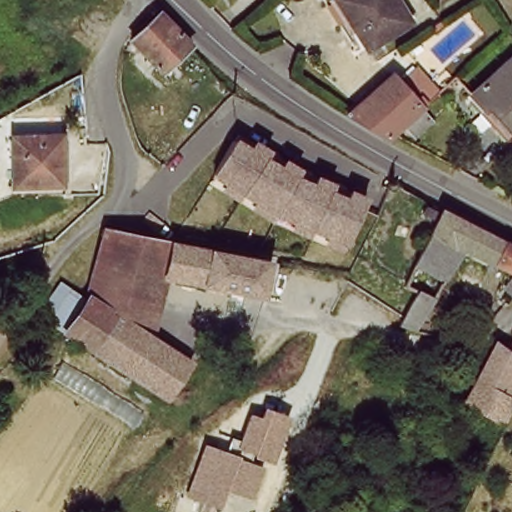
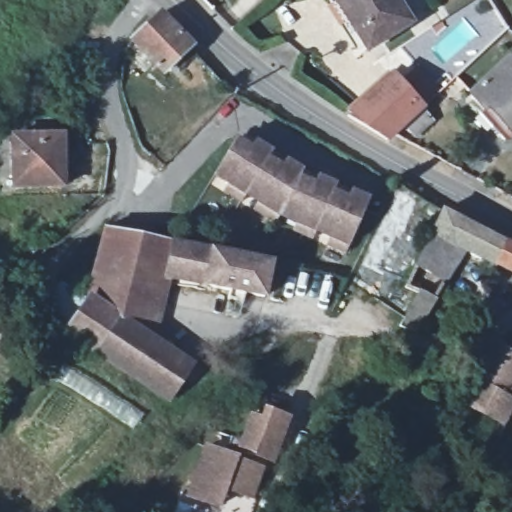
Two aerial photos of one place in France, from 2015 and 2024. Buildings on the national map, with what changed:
unchanged [(405,0),(406,1),(416,18),(373,45),(367,35),(363,29),(357,32),(337,0),(405,0)]
unchanged [(164,74),(132,41),(150,24),(161,14),(192,46),(164,74)]
unchanged [(470,101),(474,99),(470,95),(510,59),(512,61),(512,134),(505,140),(490,123),(470,101)]
unchanged [(428,104),(406,80),(418,69),(440,93),(428,104)]
unchanged [(405,125),(388,140),(348,115),(393,75),(423,108),(421,109),(433,121),(416,137),(405,125)]
unchanged [(63,187),(13,188),(12,137),(57,136),(63,136),(63,156),(63,187)]
unchanged [(350,254),(280,224),(215,185),(235,151),(240,144),(255,154),(271,164),(285,173),(302,183),(317,189),(335,197),(350,203),(368,210),(350,254)]
unchanged [(497,267),(473,256),(463,249),(434,230),(445,209),(461,219),(512,244),(512,272),(498,265),(497,267)]
unchanged [(57,314),(46,307),(61,284),(72,292),(87,302),(90,298),(102,247),(106,229),(185,245),(262,261),(272,263),(265,298),(169,279),(155,339),(151,338),(129,374),(66,333),(52,323),(57,314)]
unchanged [(463,249),(447,280),(416,267),(434,230),(463,249)]
unchanged [(512,295),(504,289),(512,279),(512,295)]
unchanged [(401,327),(418,293),(419,292),(435,299),(415,331),(401,327)]
unchanged [(151,338),(155,339),(194,366),(170,400),(129,374),(151,338)]
unchanged [(472,405),(500,351),(503,344),(512,351),(512,419),(510,424),(472,405)]
unchanged [(292,419),(274,466),(269,465),(258,503),(227,492),(221,510),(188,498),(208,444),(227,452),(233,437),(241,441),(252,414),(262,417),(265,409),(292,419)]

